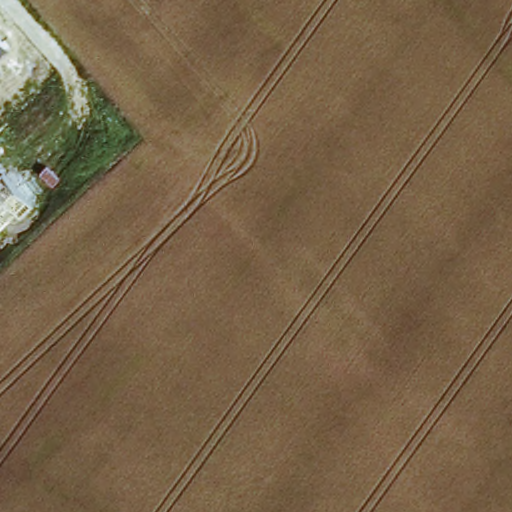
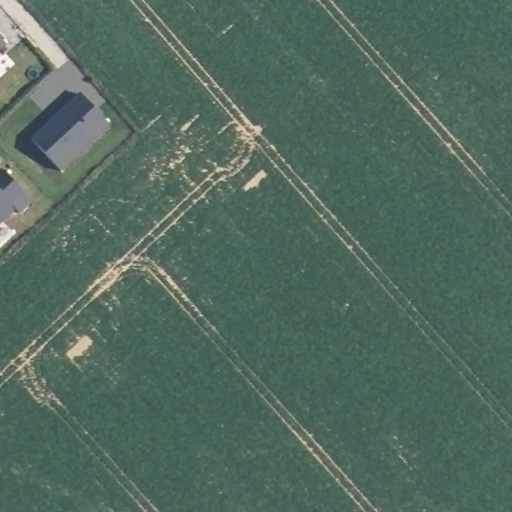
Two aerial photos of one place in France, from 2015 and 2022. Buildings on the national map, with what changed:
unchanged [(0,51),(0,38),(7,46),(0,51)]
new [(81,100),(110,131),(61,177),(32,146),(81,100)]
unchanged [(20,215),(16,210),(0,225),(0,173),(2,171),(32,204),(20,215)]

